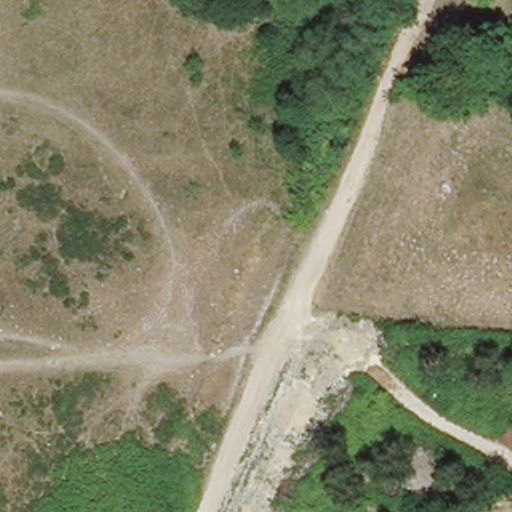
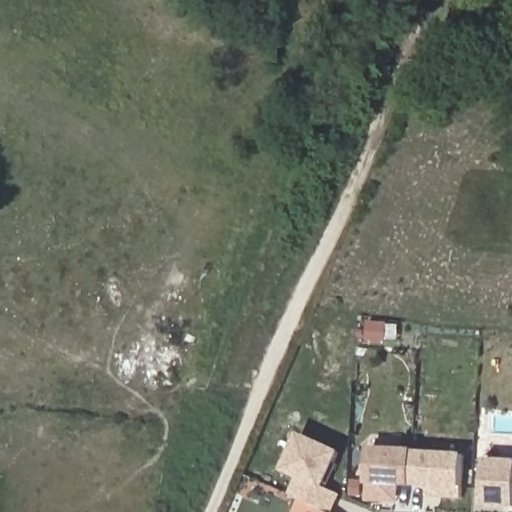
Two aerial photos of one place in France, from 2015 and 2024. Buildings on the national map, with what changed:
new [(299,434),(337,451),(320,489),(335,496),(328,512),(313,505),(289,494),(298,475),(283,468),(299,434)]
new [(368,446),(412,448),(411,449),(410,482),(395,481),(394,498),(365,497),(368,446)]
new [(411,449),(461,452),(459,494),(424,492),(425,482),(410,482),(411,449)]
new [(512,459),(512,506),(481,504),(483,458),(512,459)]
new [(328,512),(310,512),(313,505),(328,512)]

